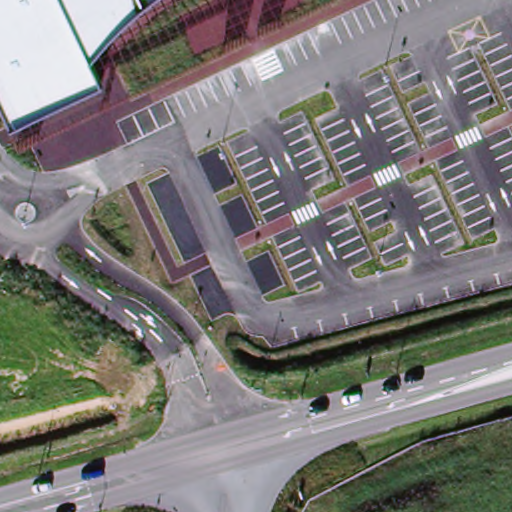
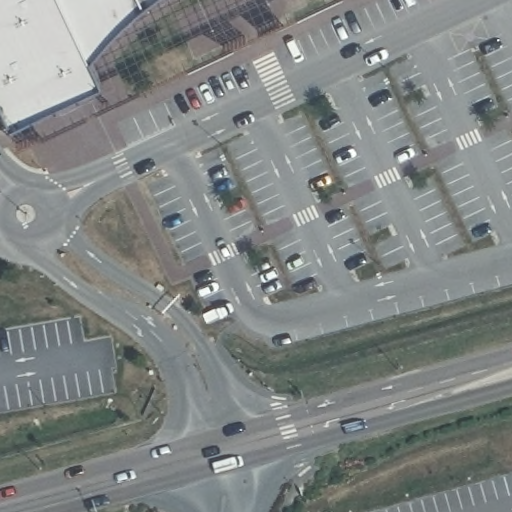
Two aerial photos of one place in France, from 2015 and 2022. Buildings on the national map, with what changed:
unchanged [(91,61),(103,85),(12,129),(0,103),(0,0),(147,0),(120,25),(91,61)]

